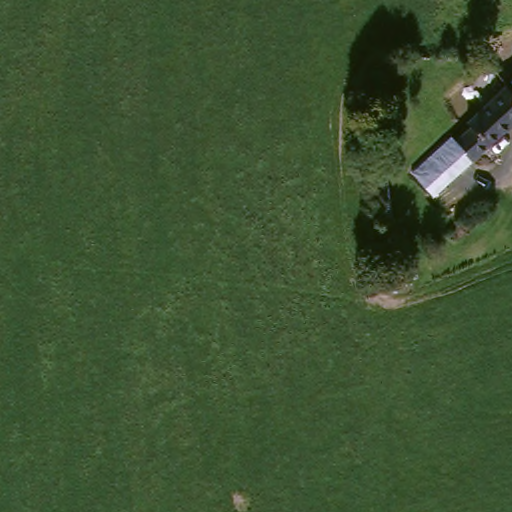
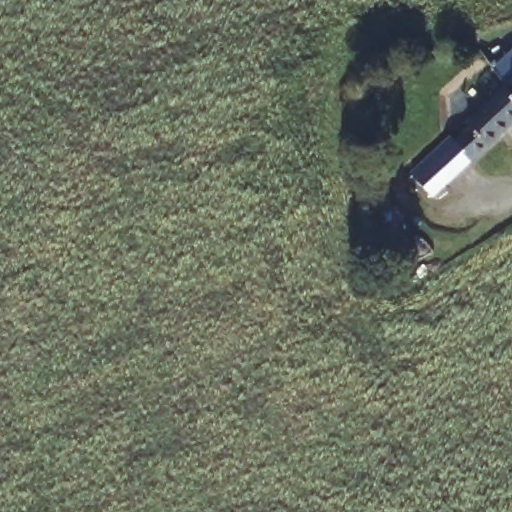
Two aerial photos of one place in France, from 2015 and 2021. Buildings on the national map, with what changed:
unchanged [(475,162),(439,198),(418,176),(455,140),(460,144),(475,129),(471,124),(507,90),(512,95),(512,130),(476,164),(475,162)]

